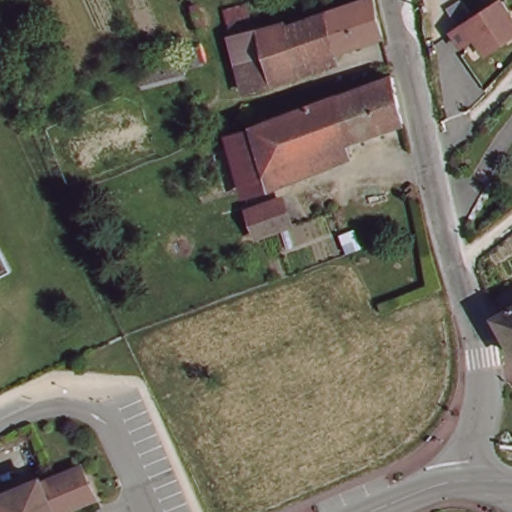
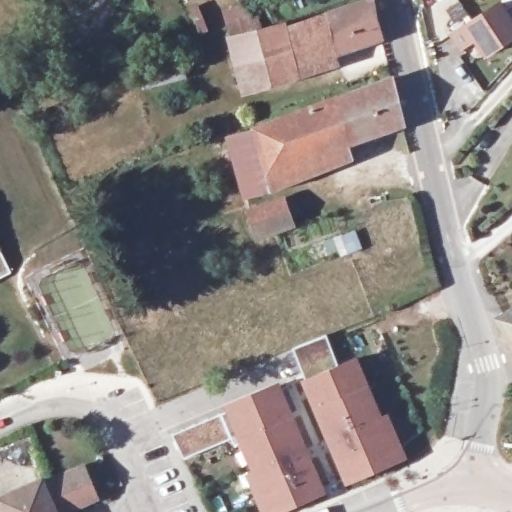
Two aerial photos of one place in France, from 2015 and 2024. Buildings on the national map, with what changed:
unchanged [(512,18),(512,28),(482,46),(472,30),(458,38),(450,25),(490,0),(501,0),(512,18)]
unchanged [(380,42),(242,89),(229,45),(281,29),(283,34),(372,6),(380,42)]
unchanged [(182,73),(140,86),(135,67),(176,54),(182,73)]
unchanged [(399,131),(282,170),(286,183),(241,198),(221,142),(234,137),(333,104),(335,107),(385,89),(399,131)]
unchanged [(290,232),(257,245),(247,215),(279,204),(290,232)]
unchanged [(11,268),(0,274),(0,245),(11,268)]
unchanged [(512,306),(512,347),(494,318),(512,306)]
new [(335,365),(359,357),(369,385),(381,416),(390,412),(407,460),(343,486),(313,409),(301,381),(303,379),(292,349),(327,336),(335,365)]
new [(223,405),(280,379),(293,416),(325,492),(280,512),(260,512),(243,473),(250,470),(238,440),(232,446),(228,438),(185,457),(172,433),(226,410),(223,405)]
unchanged [(32,474),(35,480),(75,462),(89,488),(48,509),(50,512),(0,512),(0,490),(32,474)]

